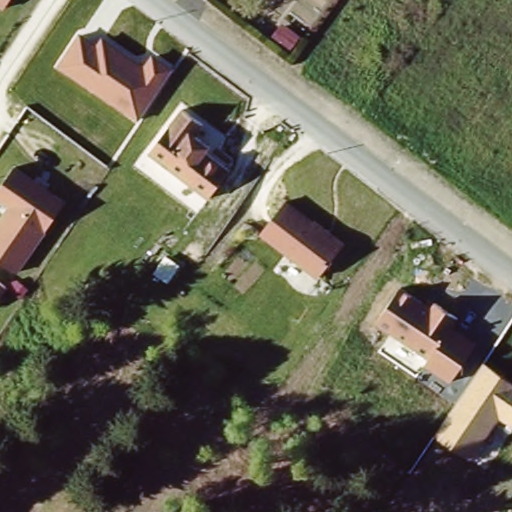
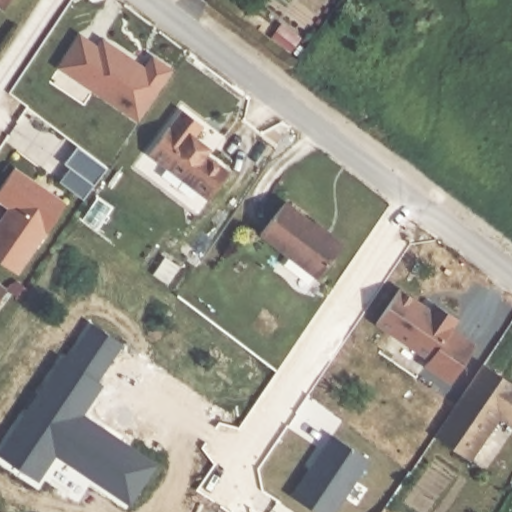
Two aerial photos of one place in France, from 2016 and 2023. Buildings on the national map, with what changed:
unchanged [(0,10),(0,0),(8,0),(0,10)]
unchanged [(80,34),(96,45),(100,38),(144,65),(150,56),(169,69),(135,120),(57,66),(80,34)]
unchanged [(197,135),(213,146),(208,155),(230,170),(209,197),(149,153),(181,108),(206,126),(197,135)]
new [(59,157),(72,139),(107,166),(94,184),(83,198),(54,176),(65,161),(59,157)]
unchanged [(63,204),(16,271),(0,259),(0,217),(6,208),(0,204),(0,187),(14,168),(63,204)]
unchanged [(344,242),(317,276),(260,233),(286,199),(344,242)]
unchanged [(7,289),(0,299),(0,283),(7,289)]
unchanged [(401,287),(428,306),(431,302),(458,319),(450,331),(475,347),(450,383),(425,366),(428,361),(376,324),(401,287)]
new [(63,358),(68,361),(94,324),(125,344),(99,382),(105,385),(83,416),(156,465),(130,504),(55,454),(37,481),(0,455),(0,451),(63,358)]
new [(512,384),(512,426),(498,417),(468,460),(433,436),(482,364),(512,384)]
new [(332,435),(370,459),(335,512),(315,512),(291,496),(332,435)]
new [(385,507),(392,512),(381,512),(385,507)]

